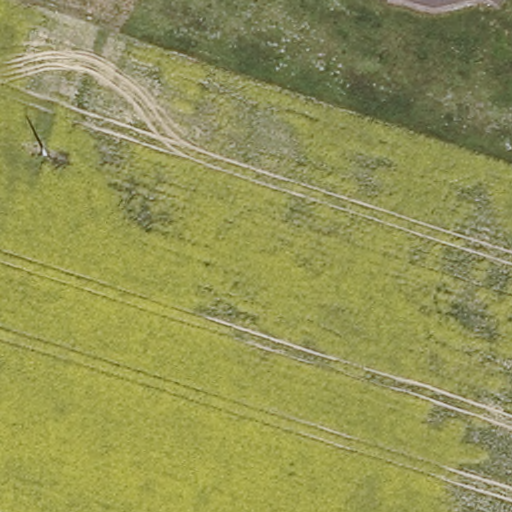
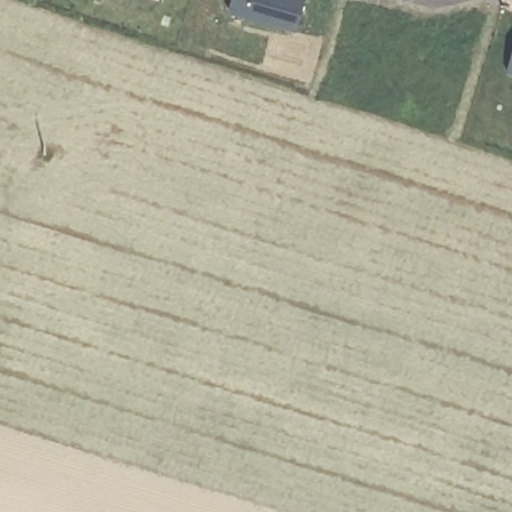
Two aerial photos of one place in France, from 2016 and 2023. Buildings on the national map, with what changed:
new [(230,10),(233,0),(303,0),(295,29),(230,10)]
new [(512,58),(512,70),(509,69),(512,58)]

